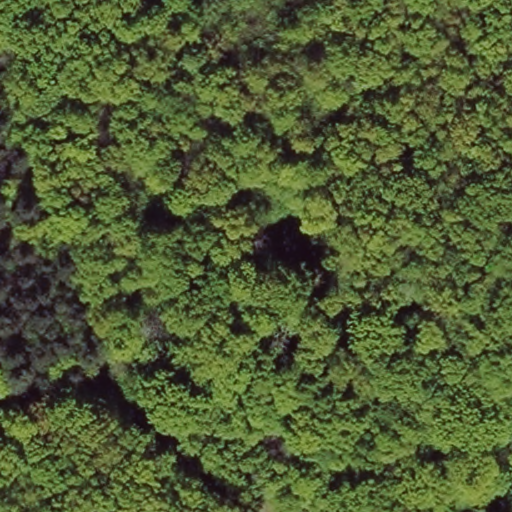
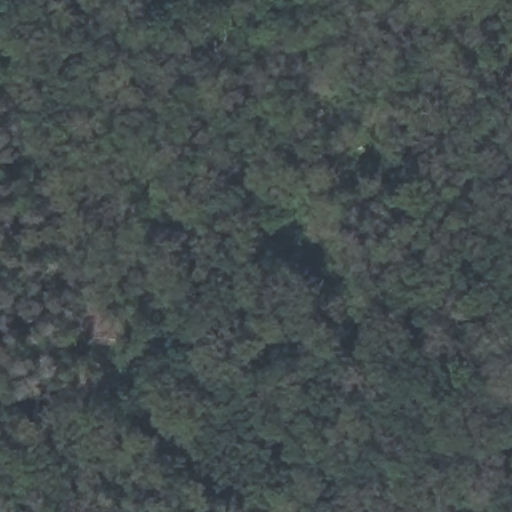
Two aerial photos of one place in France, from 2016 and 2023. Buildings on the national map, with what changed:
[]

